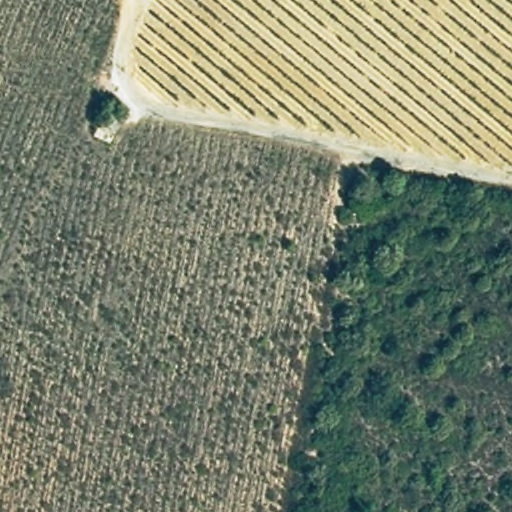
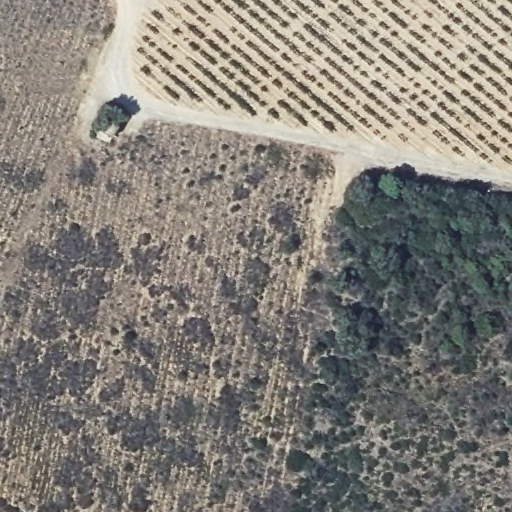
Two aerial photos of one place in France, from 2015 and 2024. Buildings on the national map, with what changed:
unchanged [(123,119),(115,138),(98,134),(107,111),(123,119)]

